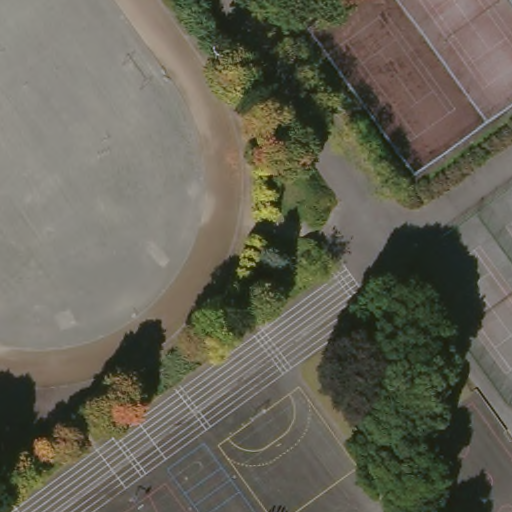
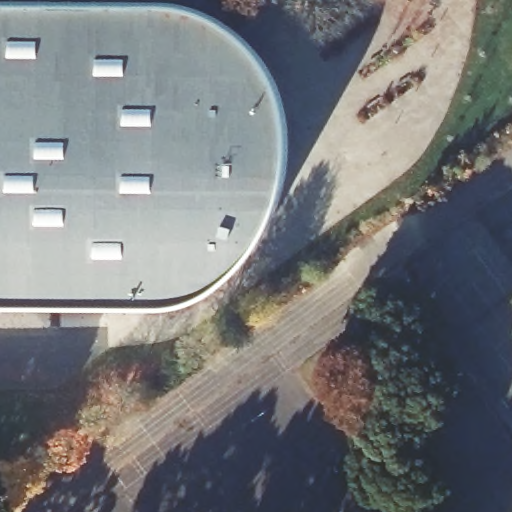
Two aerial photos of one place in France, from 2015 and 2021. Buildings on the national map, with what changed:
new [(72,3),(161,5),(181,6),(210,14),(233,27),(249,40),(260,55),(268,65),(277,80),(284,101),(287,126),(288,149),(287,169),(285,186),(278,206),(266,226),(256,244),(248,255),(236,268),(224,279),(209,289),(193,297),(175,303),(0,303),(0,0),(72,0),(72,3)]

